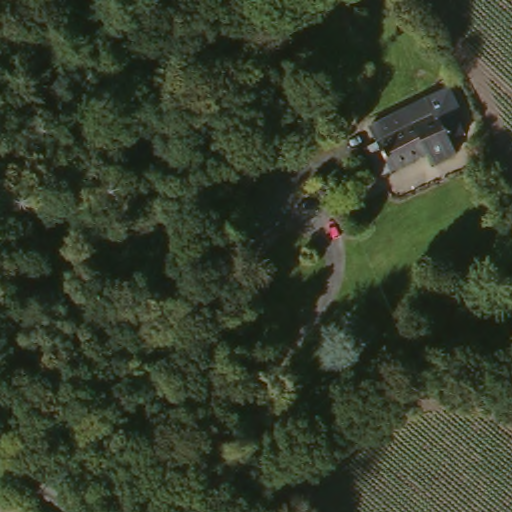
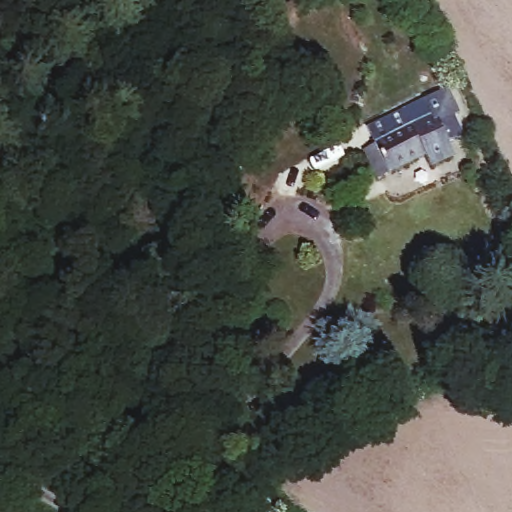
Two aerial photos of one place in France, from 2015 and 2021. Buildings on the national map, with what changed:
unchanged [(450,92),(463,120),(457,123),(465,141),(449,149),(454,161),(435,172),(428,159),(392,177),(370,133),(450,92)]

